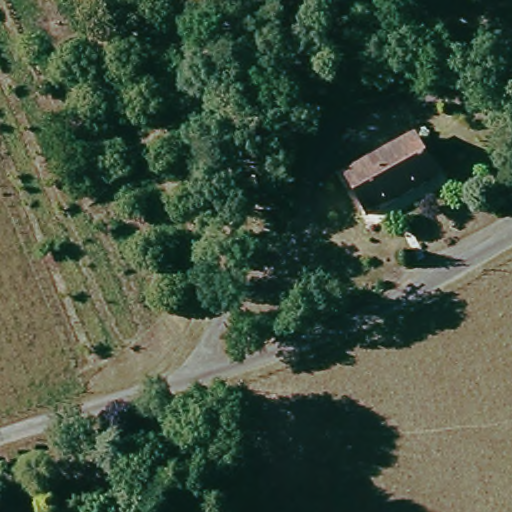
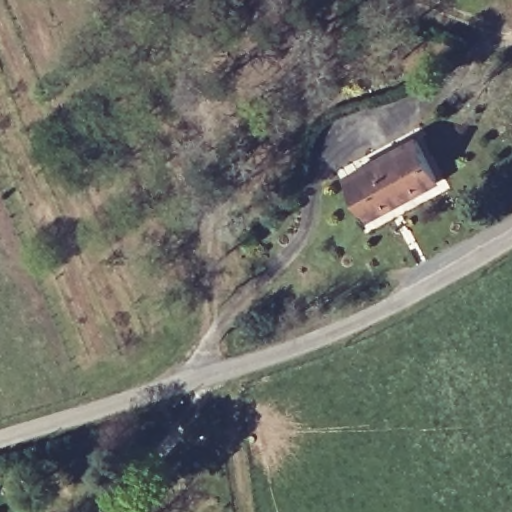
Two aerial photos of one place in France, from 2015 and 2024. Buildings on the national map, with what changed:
unchanged [(431,138),(451,178),(380,215),(359,174),(431,138)]

